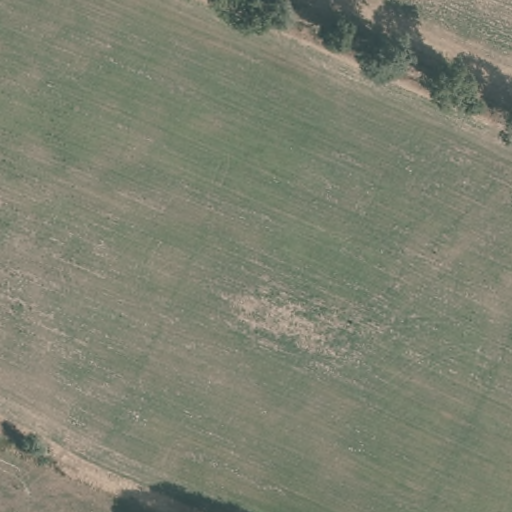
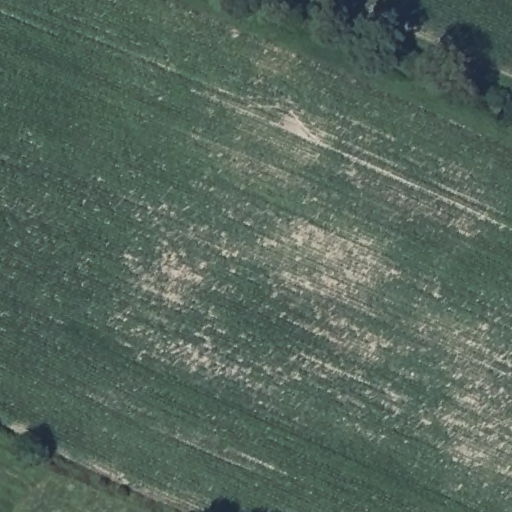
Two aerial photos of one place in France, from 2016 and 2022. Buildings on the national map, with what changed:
[]

